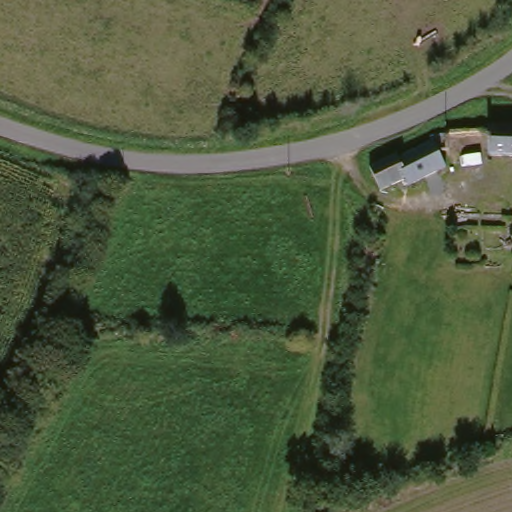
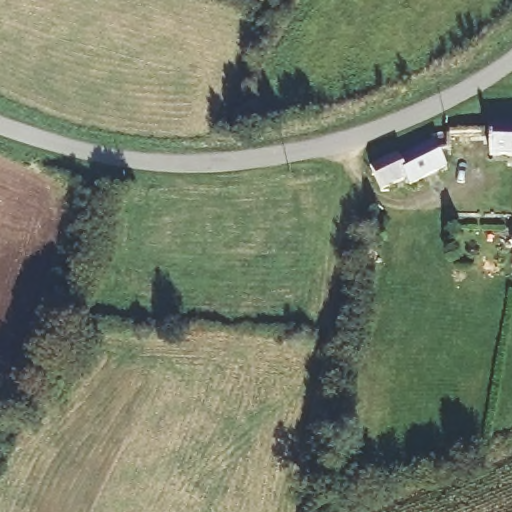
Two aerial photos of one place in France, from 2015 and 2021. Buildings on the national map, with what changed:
unchanged [(512,154),(489,151),(493,125),(493,120),(512,122),(512,154)]
unchanged [(399,143),(400,148),(434,134),(433,129),(451,126),(450,137),(439,140),(445,155),(408,170),(406,167),(378,181),(368,157),(399,143)]

